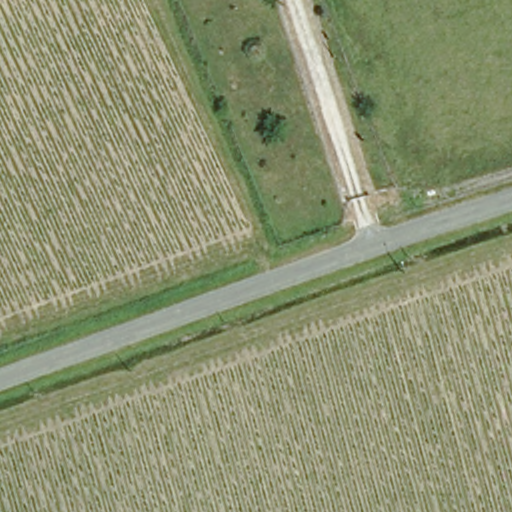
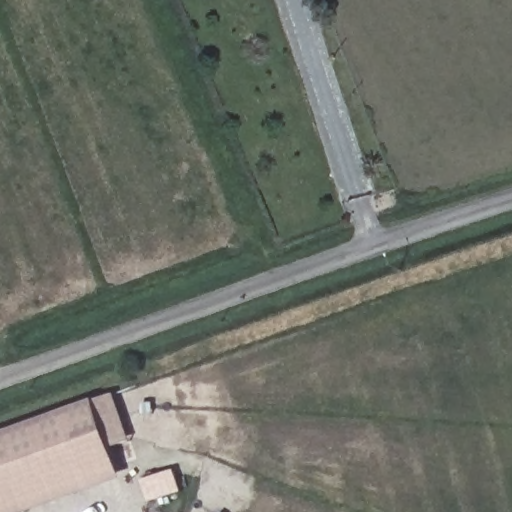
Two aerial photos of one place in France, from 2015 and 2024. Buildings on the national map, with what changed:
new [(31,512),(0,512),(0,434),(115,393),(132,441),(112,448),(123,479),(31,512)]
new [(153,503),(145,480),(175,470),(183,493),(153,503)]

